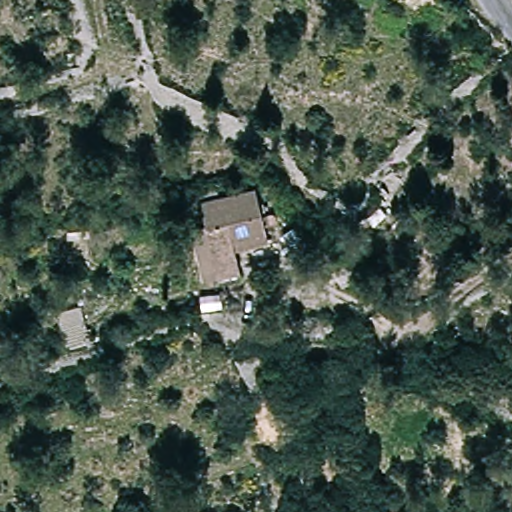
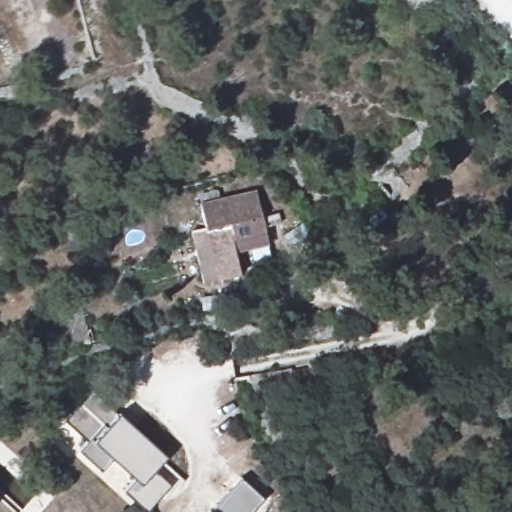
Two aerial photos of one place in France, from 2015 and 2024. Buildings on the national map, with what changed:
unchanged [(419,2),(414,0),(420,0),(419,2)]
unchanged [(187,233),(203,230),(195,206),(252,193),(266,247),(232,255),(237,277),(198,286),(187,233)]
unchanged [(272,256),(292,243),(300,254),(280,266),(272,256)]
unchanged [(58,315),(81,308),(89,337),(92,351),(69,357),(66,345),(58,315)]
new [(118,412),(165,456),(153,470),(170,485),(147,512),(146,512),(124,491),(135,480),(112,458),(100,470),(78,451),(86,441),(63,421),(92,390),(117,414),(118,412)]
new [(250,512),(220,512),(214,506),(240,477),(262,498),(250,512)]

